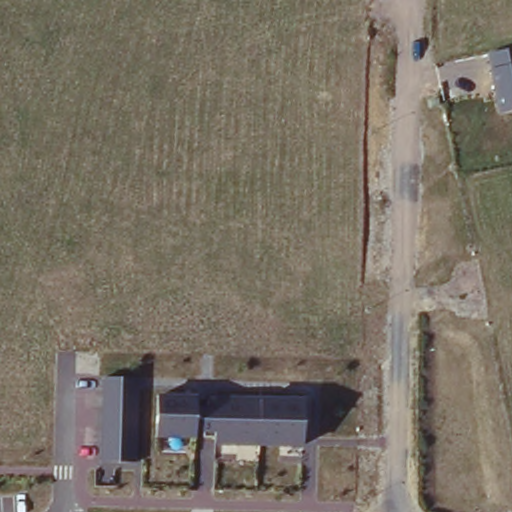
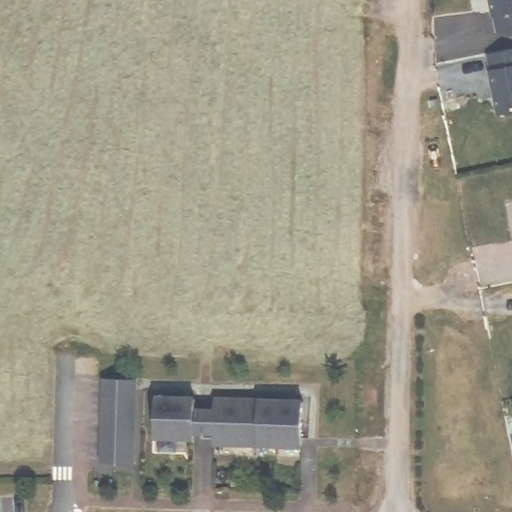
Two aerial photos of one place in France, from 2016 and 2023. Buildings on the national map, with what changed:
new [(498,36),(495,21),(494,21),(489,0),(512,0),(512,33),(498,36)]
unchanged [(512,49),(512,111),(499,114),(488,55),(512,49)]
unchanged [(138,378),(135,462),(99,462),(101,378),(138,378)]
unchanged [(304,397),(301,447),(214,444),(214,435),(195,435),(195,441),(155,438),(156,394),(304,397)]

